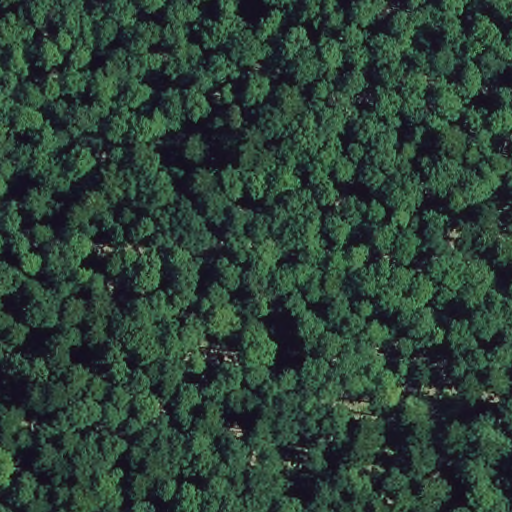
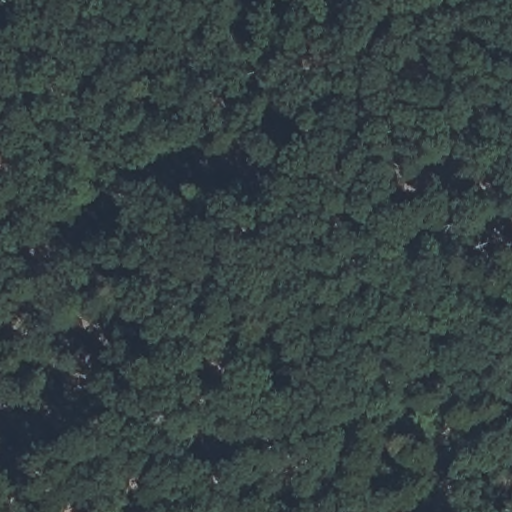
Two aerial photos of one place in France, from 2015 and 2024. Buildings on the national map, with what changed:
[]

